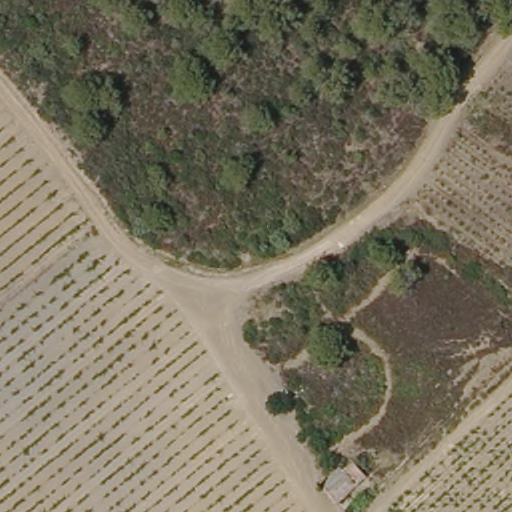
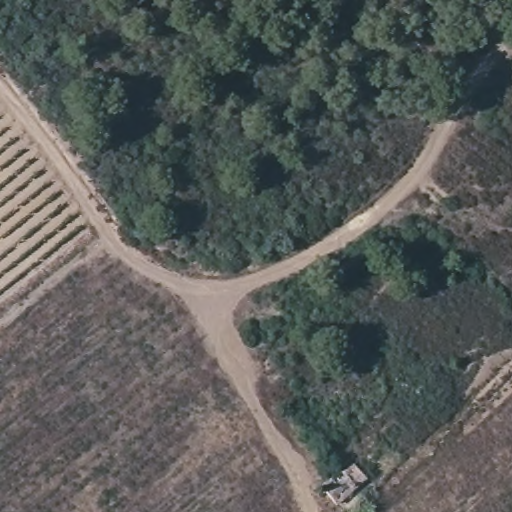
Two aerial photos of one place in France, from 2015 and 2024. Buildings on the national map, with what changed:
unchanged [(345,470),(355,463),(365,481),(330,505),(315,483),(335,469),(345,470)]

